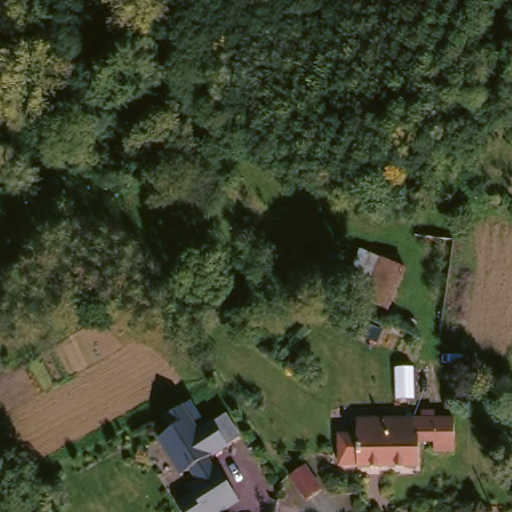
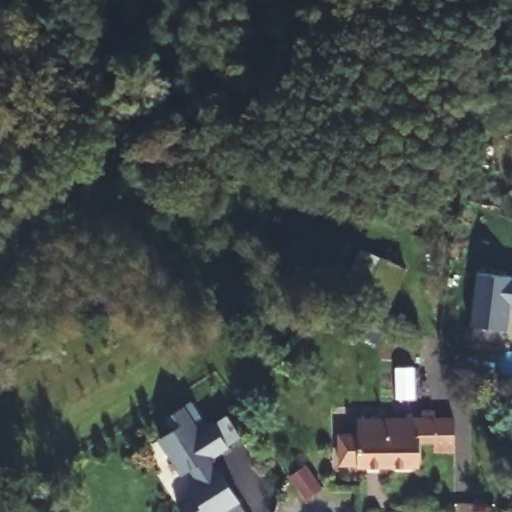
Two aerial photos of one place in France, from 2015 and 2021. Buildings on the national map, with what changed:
unchanged [(398,297),(356,277),(367,246),(414,264),(398,297)]
new [(512,277),(512,306),(510,306),(507,330),(471,326),(477,274),(512,277)]
unchanged [(244,439),(215,454),(241,501),(222,512),(185,512),(177,498),(197,486),(189,468),(176,474),(159,435),(170,430),(164,411),(189,399),(200,422),(229,413),(244,439)]
unchanged [(426,467),(340,473),(337,424),(425,418),(425,437),(426,467)]
unchanged [(465,419),(465,452),(444,452),(444,435),(425,437),(425,418),(465,419)]
unchanged [(322,491),(307,501),(290,476),(305,466),(322,491)]

